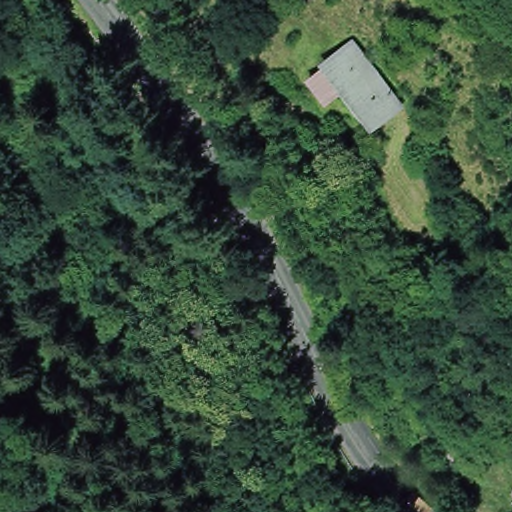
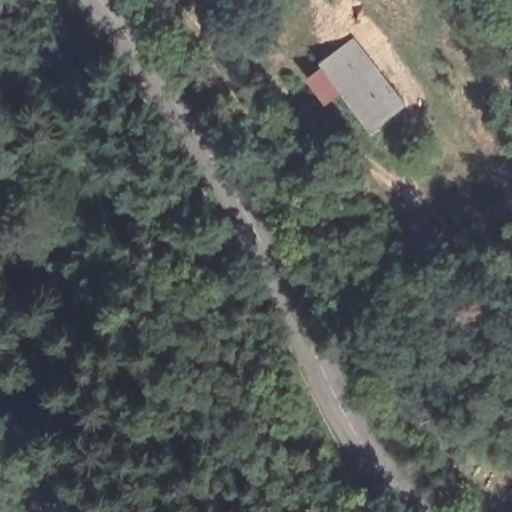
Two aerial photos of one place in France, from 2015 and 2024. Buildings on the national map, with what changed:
unchanged [(304,78),(326,65),(323,61),(353,39),(404,104),(372,129),(343,88),(322,103),(304,78)]

